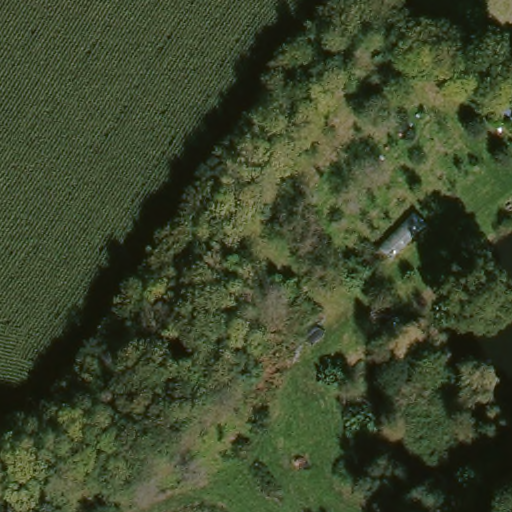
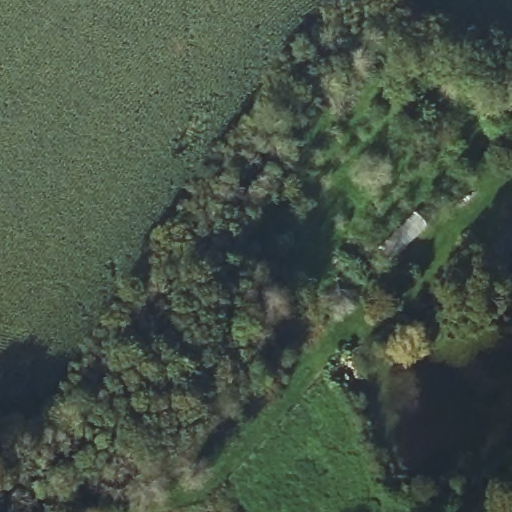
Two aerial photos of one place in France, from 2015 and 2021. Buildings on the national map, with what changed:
unchanged [(512,137),(489,118),(509,98),(512,100),(512,137)]
unchanged [(423,229),(387,264),(375,250),(409,215),(423,229)]

